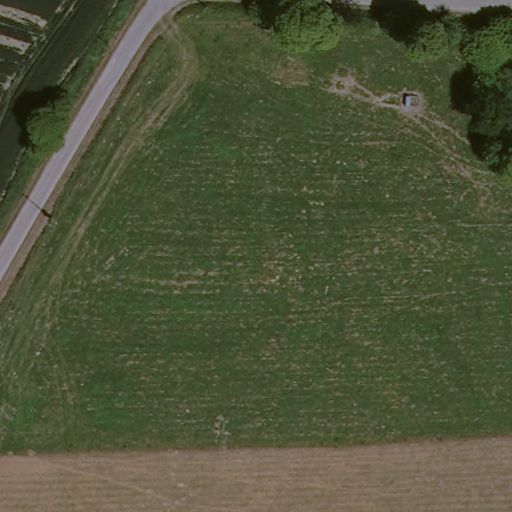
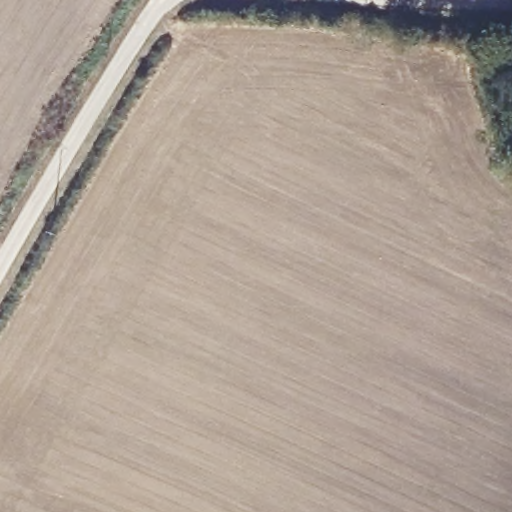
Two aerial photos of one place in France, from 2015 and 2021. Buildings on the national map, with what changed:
[]

